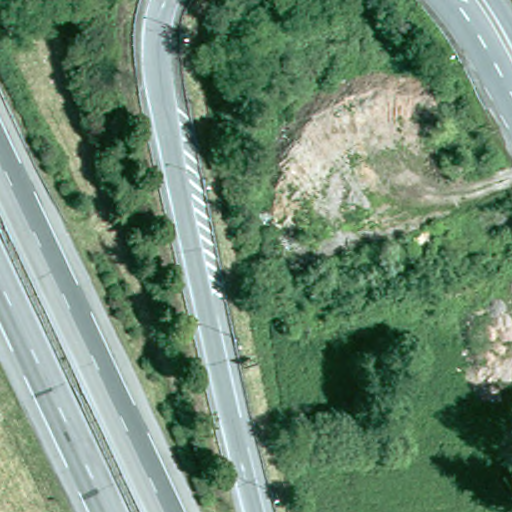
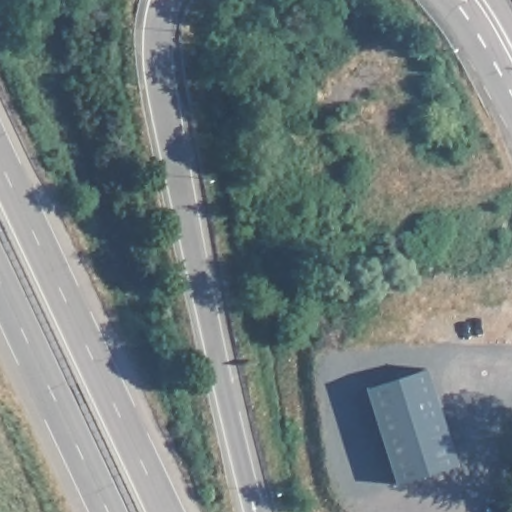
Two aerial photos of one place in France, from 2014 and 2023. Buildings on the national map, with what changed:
new [(426,371),(456,467),(395,487),(364,391),(426,371)]

